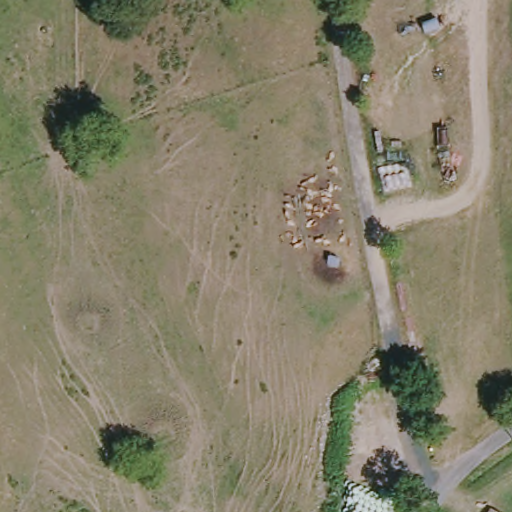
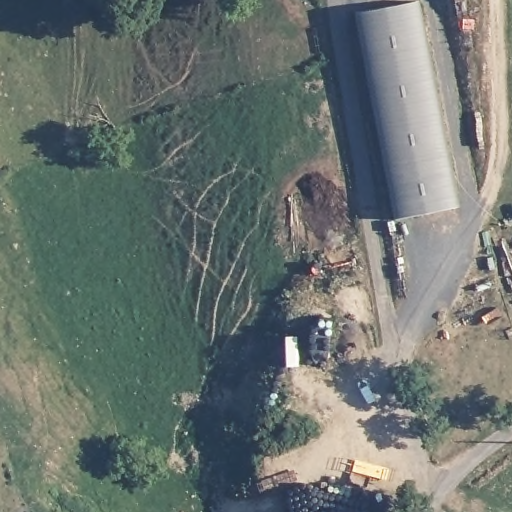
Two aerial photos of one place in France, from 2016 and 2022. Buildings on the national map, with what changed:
new [(358,14),(417,3),(459,207),(397,219),(358,14)]

